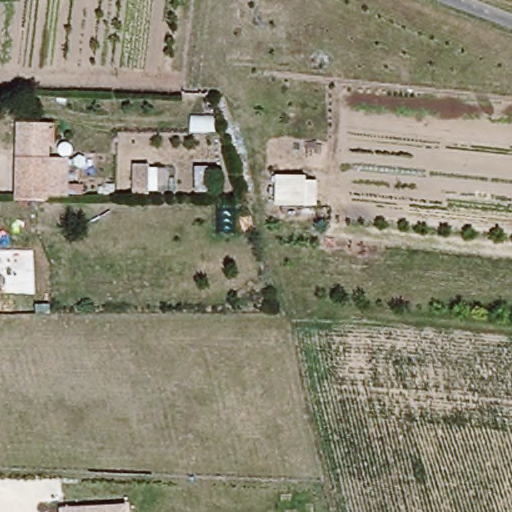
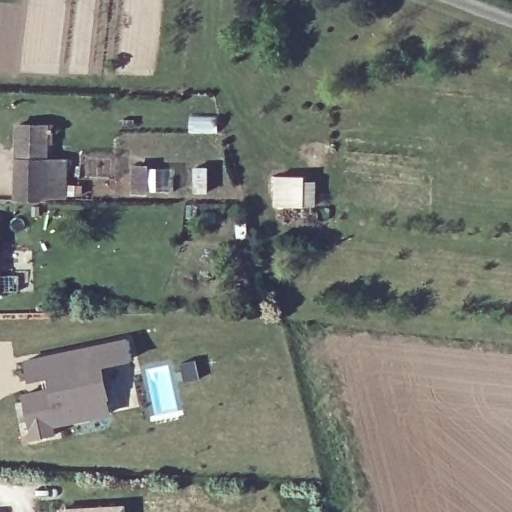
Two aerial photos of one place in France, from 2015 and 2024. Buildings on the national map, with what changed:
unchanged [(52,122),(51,161),(68,161),(66,202),(16,202),(15,123),(52,122)]
unchanged [(130,167),(148,167),(148,170),(157,170),(157,192),(148,192),(148,197),(129,197),(130,167)]
unchanged [(274,175),(317,176),(316,204),(273,204),(274,175)]
new [(87,418),(56,424),(58,434),(35,437),(27,393),(56,387),(53,375),(34,378),(30,360),(134,341),(138,359),(108,365),(113,397),(116,413),(87,418)]
unchanged [(60,508),(126,503),(127,512),(61,512),(60,508)]

